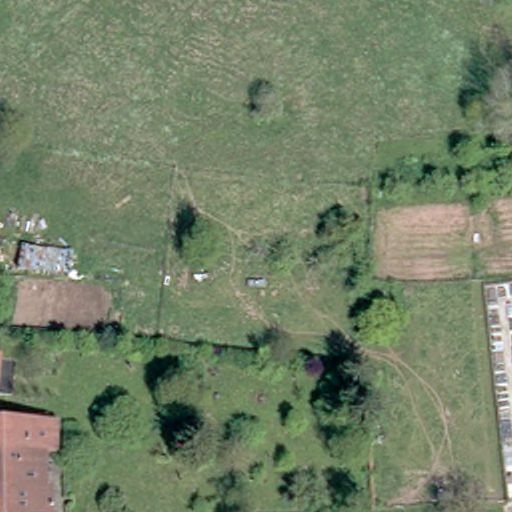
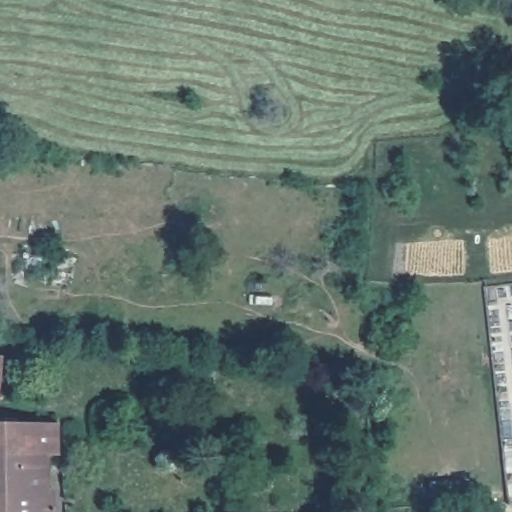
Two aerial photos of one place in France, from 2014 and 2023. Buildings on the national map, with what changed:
unchanged [(0,365),(0,355),(1,355),(0,365)]
unchanged [(52,454),(43,453),(40,453),(5,451),(0,451),(0,423),(52,425),(52,451),(52,454)]
unchanged [(40,453),(43,453),(43,485),(47,485),(49,512),(0,512),(0,451),(5,451),(40,453)]

